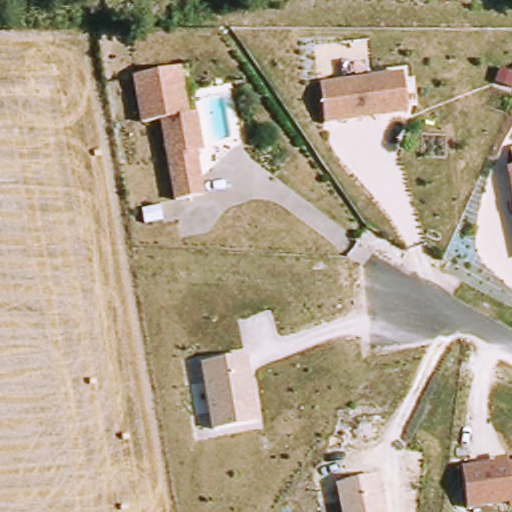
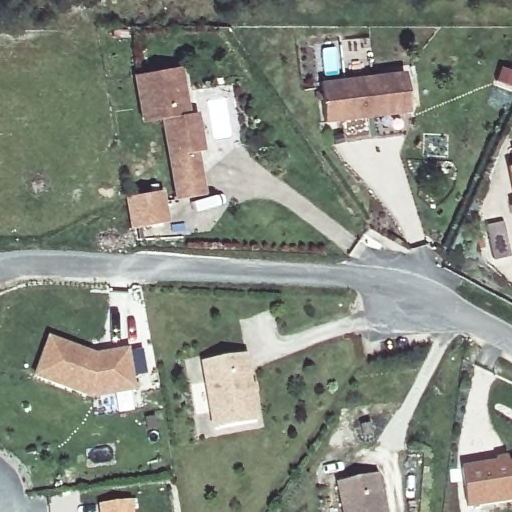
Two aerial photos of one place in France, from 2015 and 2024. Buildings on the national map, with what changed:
unchanged [(177,70),(186,113),(195,112),(202,152),(193,153),(200,194),(170,199),(156,123),(142,122),(135,77),(177,70)]
unchanged [(403,111),(325,122),(320,84),(400,76),(403,111)]
unchanged [(512,167),(512,184),(508,167),(512,167)]
new [(130,229),(125,197),(163,191),(168,221),(130,229)]
unchanged [(512,199),(512,215),(510,200),(512,199)]
new [(136,393),(92,400),(34,377),(49,335),(95,354),(130,347),(136,393)]
unchanged [(246,356),(256,420),(215,427),(203,364),(246,356)]
unchanged [(507,503),(469,508),(463,465),(496,462),(495,456),(509,455),(510,463),(512,463),(512,509),(507,509),(507,503)]
unchanged [(343,512),(337,483),(379,473),(387,512),(343,512)]

